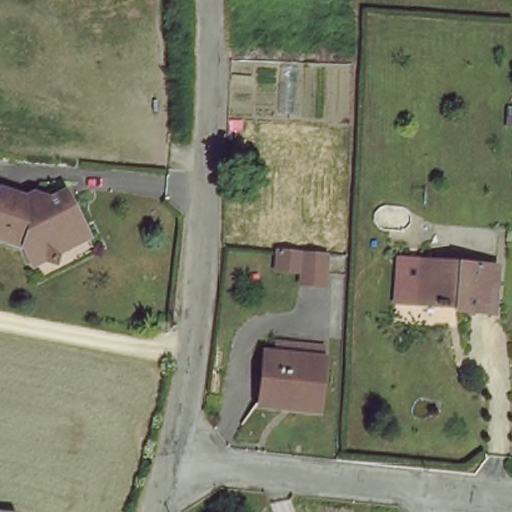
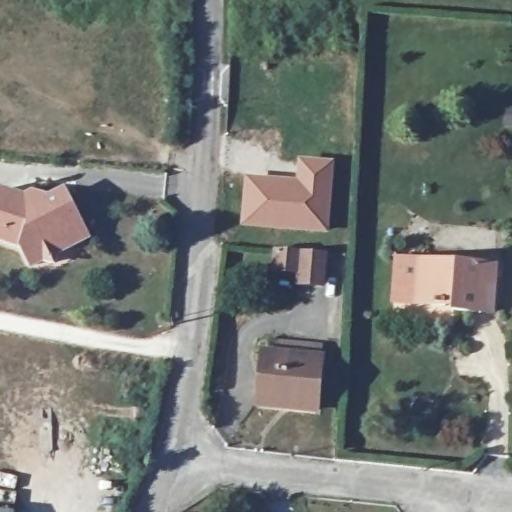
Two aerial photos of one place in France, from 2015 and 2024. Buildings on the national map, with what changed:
new [(299,182),(300,161),(330,163),(326,229),(244,224),(247,179),(299,182)]
unchanged [(27,199),(44,201),(64,187),(84,217),(67,228),(75,240),(74,244),(68,247),(66,250),(66,255),(62,256),(55,254),(52,252),(40,261),(24,238),(0,233),(0,188),(28,193),(27,199)]
unchanged [(325,253),(323,283),(298,282),(298,270),(274,268),(275,250),(325,253)]
unchanged [(418,255),(493,263),(491,307),(416,301),(418,255)]
unchanged [(388,299),(391,256),(416,256),(411,303),(388,299)]
unchanged [(256,409),(262,354),(272,355),(274,338),(323,344),(321,361),(316,415),(256,409)]
unchanged [(18,512),(0,512),(0,508),(19,509),(18,512)]

